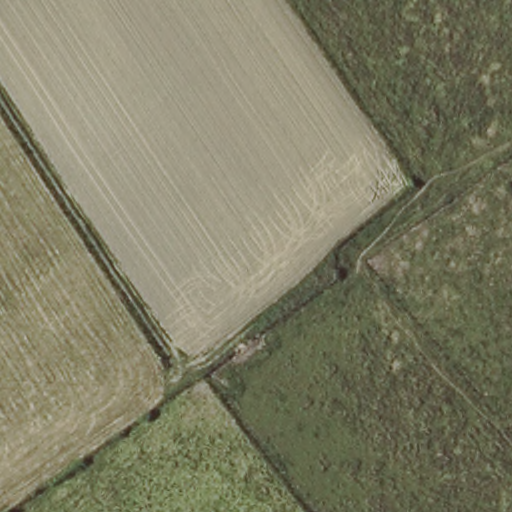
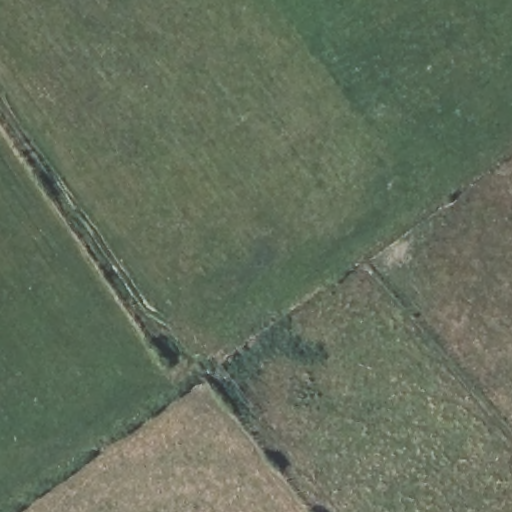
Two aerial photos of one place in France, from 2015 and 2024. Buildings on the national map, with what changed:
[]

